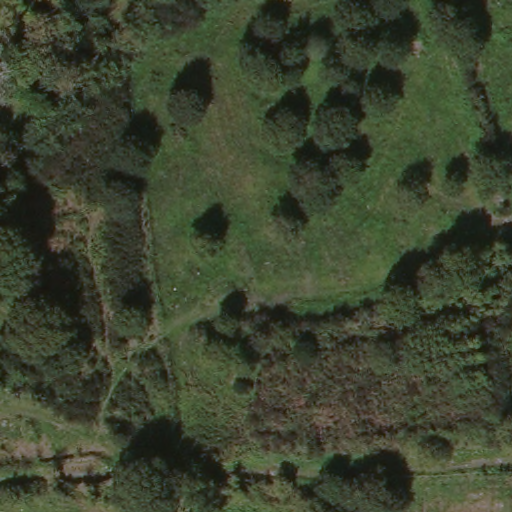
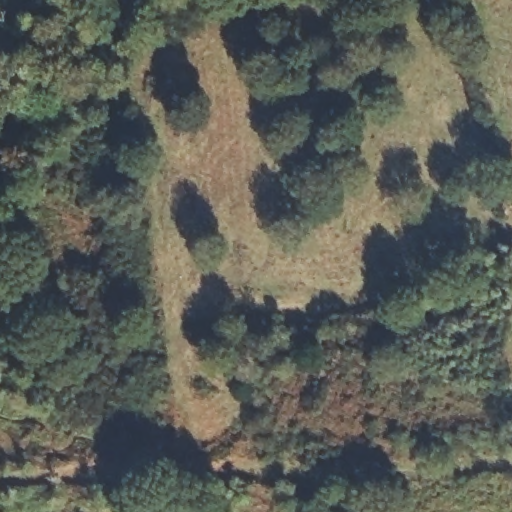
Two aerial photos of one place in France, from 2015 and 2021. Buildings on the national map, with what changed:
unchanged [(114,70),(97,89),(54,62),(74,40),(114,70)]

